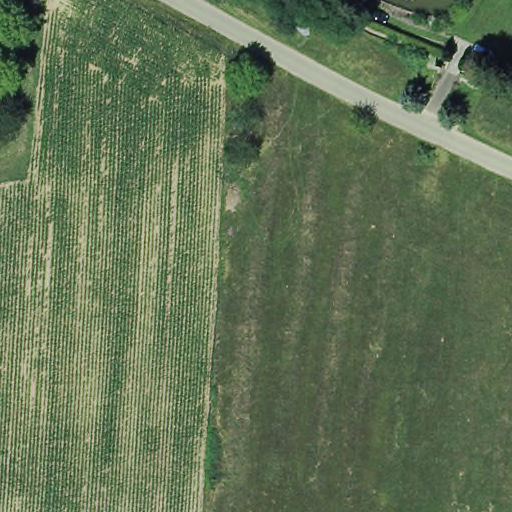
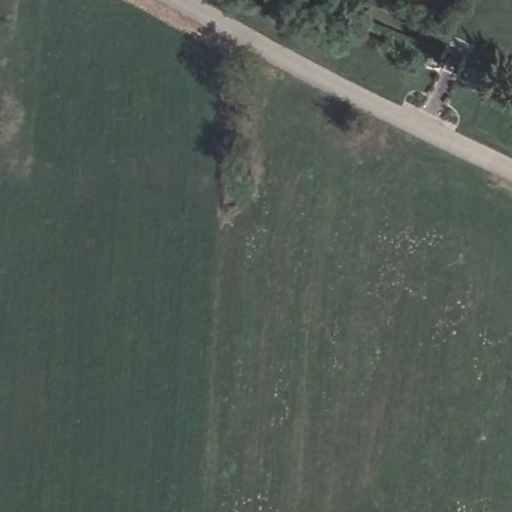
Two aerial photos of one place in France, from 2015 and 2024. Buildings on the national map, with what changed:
[]

